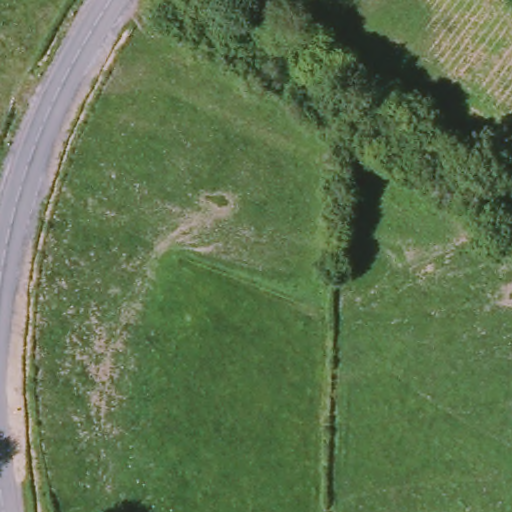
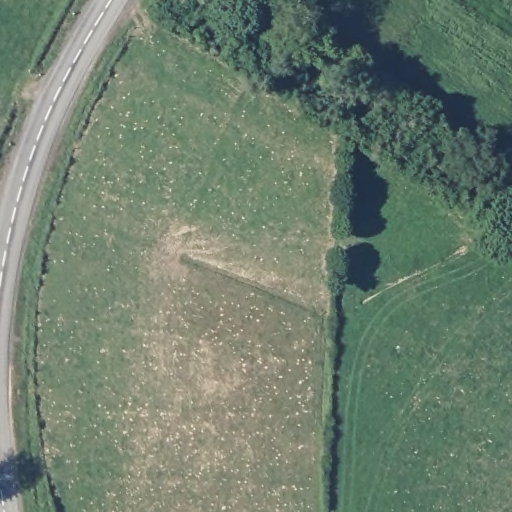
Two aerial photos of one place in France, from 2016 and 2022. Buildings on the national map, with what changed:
[]

